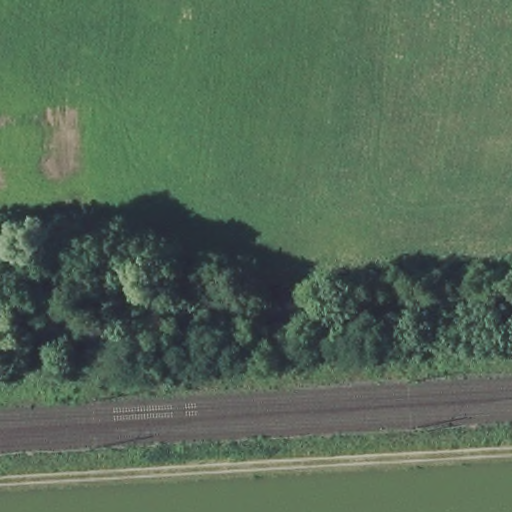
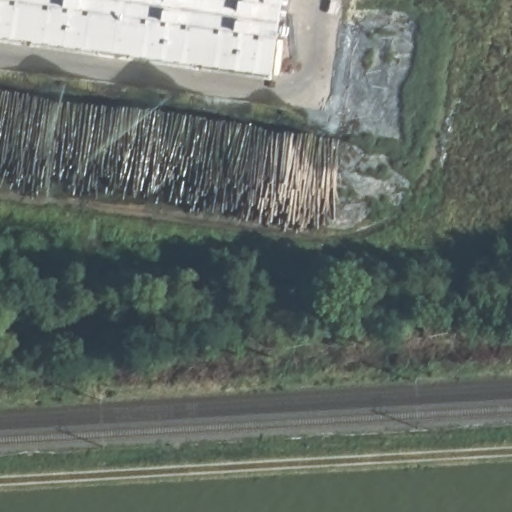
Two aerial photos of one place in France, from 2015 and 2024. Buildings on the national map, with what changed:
new [(0,44),(0,0),(281,0),(271,81),(0,44)]

